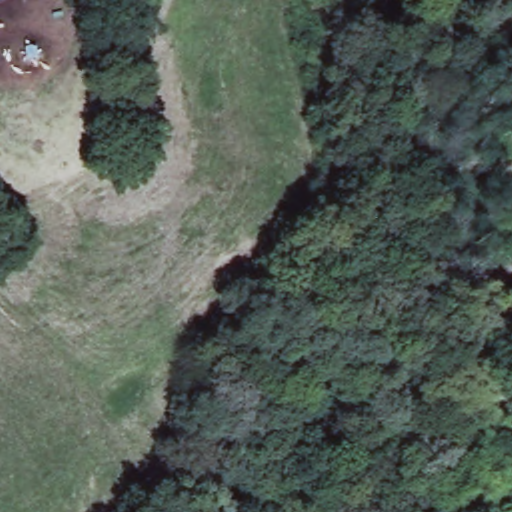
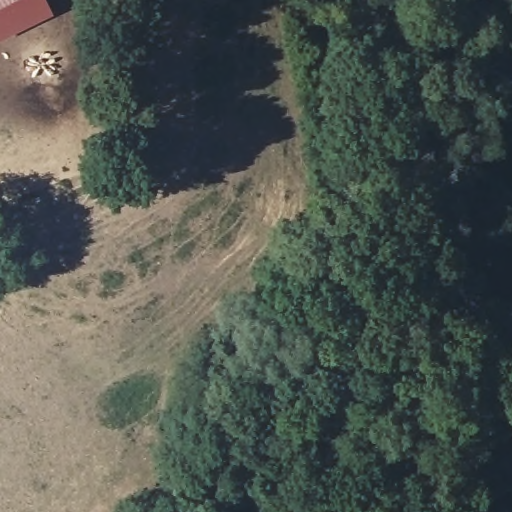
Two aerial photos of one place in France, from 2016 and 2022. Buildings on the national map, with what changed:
demolished [(0,0),(6,0),(0,4),(0,0)]
new [(0,37),(0,0),(47,0),(52,11),(0,37)]

